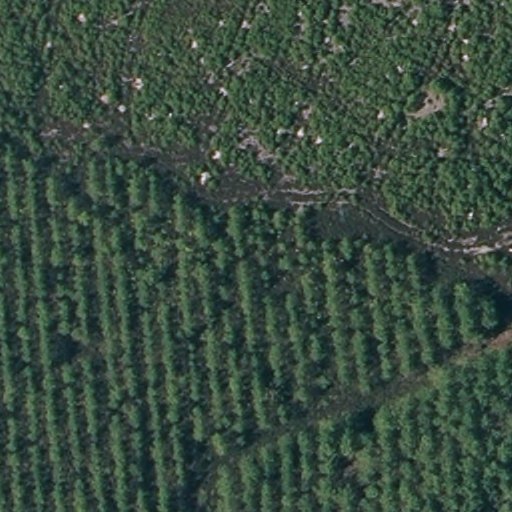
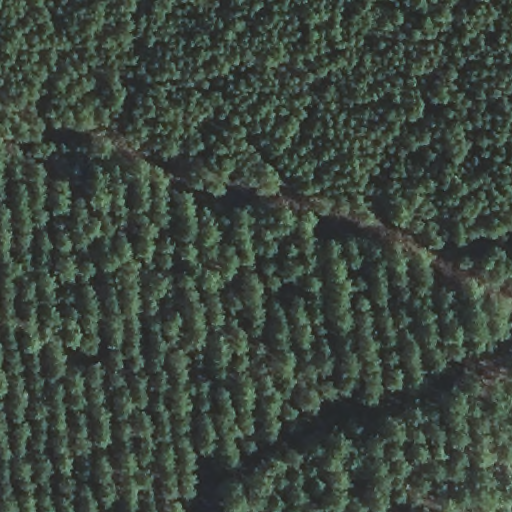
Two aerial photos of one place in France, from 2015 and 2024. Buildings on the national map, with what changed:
[]

